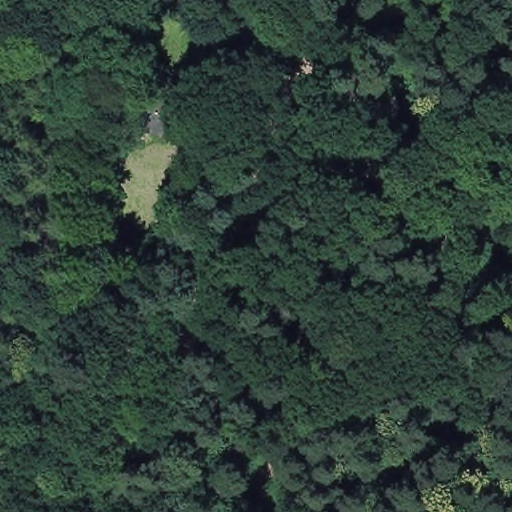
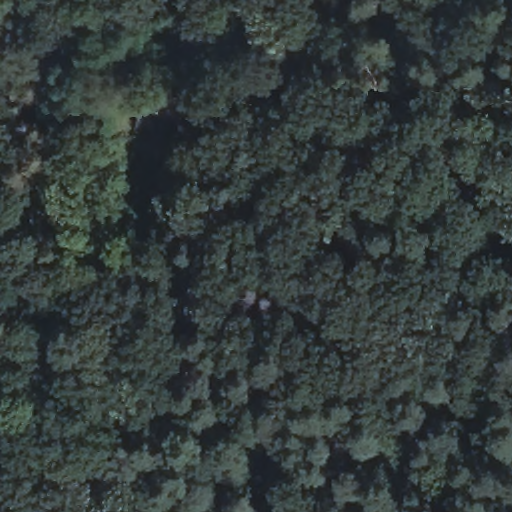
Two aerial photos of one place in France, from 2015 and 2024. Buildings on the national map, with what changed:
unchanged [(207,108),(201,146),(176,141),(162,139),(168,103),(182,105),(182,104),(207,108)]

